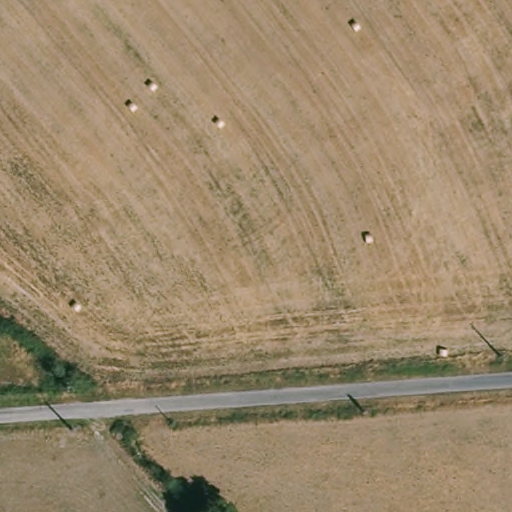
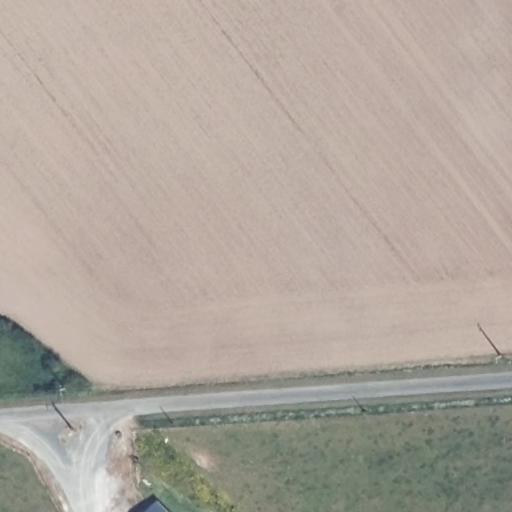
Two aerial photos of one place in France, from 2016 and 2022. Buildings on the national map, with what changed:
new [(168,512),(144,512),(157,500),(168,512)]

